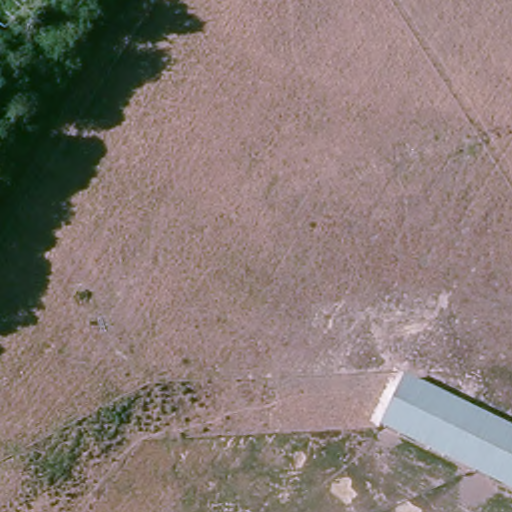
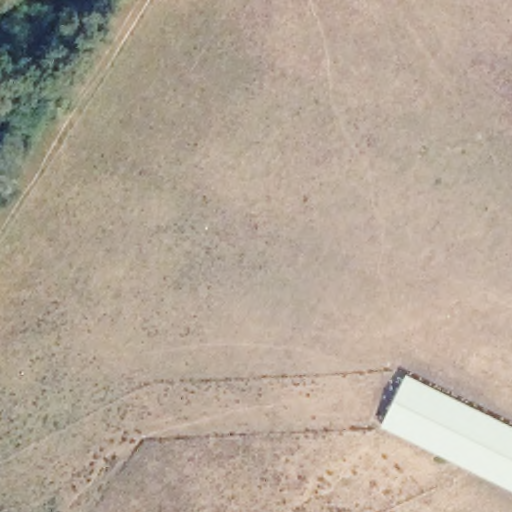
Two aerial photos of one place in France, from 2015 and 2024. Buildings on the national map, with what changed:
unchanged [(378,428),(402,376),(512,428),(512,492),(378,428)]

